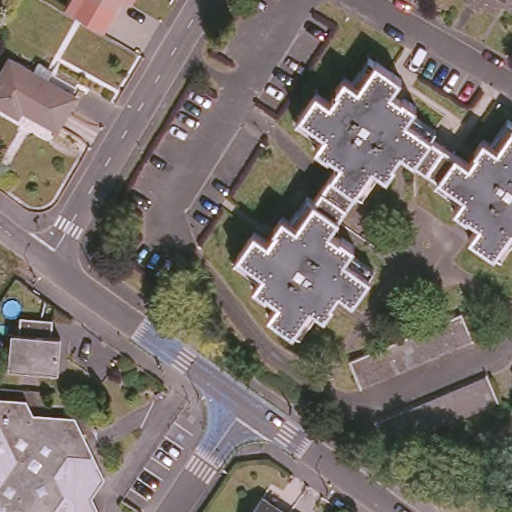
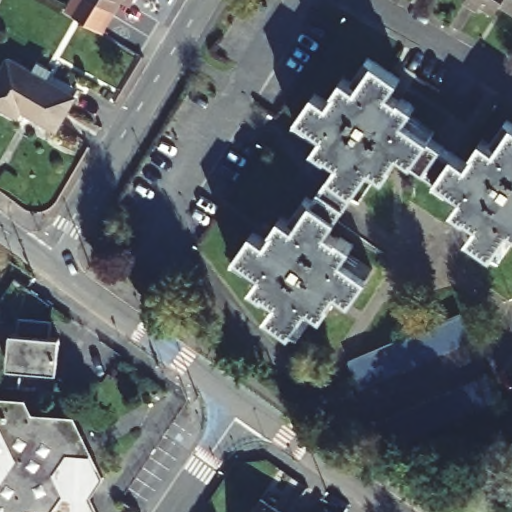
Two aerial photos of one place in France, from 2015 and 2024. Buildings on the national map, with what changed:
unchanged [(126,5),(121,4),(105,31),(66,10),(72,0),(129,0),(126,5)]
unchanged [(495,14),(482,5),(478,10),(465,1),(466,0),(512,0),(512,11),(501,4),(495,14)]
unchanged [(23,110),(20,116),(0,105),(0,74),(9,58),(76,95),(58,130),(23,110)]
unchanged [(339,162),(330,156),(328,158),(315,149),(324,135),(299,117),(316,92),(330,102),(337,91),(335,90),(344,77),(358,87),(375,61),(401,79),(392,93),(402,100),(403,99),(415,107),(407,120),(444,146),(426,171),(401,154),(394,164),(396,165),(387,178),(372,169),(346,205),(322,188),(339,162)]
unchanged [(476,154),(474,152),(483,139),(497,149),(512,126),(512,232),(511,231),(494,255),(469,239),(478,225),(468,218),(467,220),(454,210),(463,197),(426,171),(444,146),(469,164),(476,154)]
unchanged [(329,230),(340,238),(341,236),(354,245),(345,259),(370,276),(353,301),(339,291),(331,302),(333,303),(325,316),(312,307),(294,332),(269,315),(278,302),(268,295),(267,296),(253,287),(263,273),(237,256),(254,231),(268,240),(275,230),(273,229),(283,216),(296,225),(322,188),(346,205),(329,230)]
unchanged [(472,340),(460,346),(447,351),(434,356),(422,361),(410,367),(396,372),(385,377),(372,383),(361,387),(350,360),(361,356),(373,351),(386,345),(398,340),(411,335),(423,330),(435,325),(449,319),(460,315),(472,340)]
unchanged [(55,340),(64,341),(61,375),(13,371),(16,337),(23,338),(24,322),(56,325),(55,340)]
unchanged [(488,377),(498,401),(485,406),(472,412),(460,417),(448,422),(435,428),(422,433),(410,439),(398,444),(387,449),(375,422),(386,417),(399,412),(411,407),(424,402),(436,396),(449,391),(461,386),(475,380),(487,375),(488,377)]
unchanged [(31,414),(72,417),(100,476),(88,495),(96,512),(0,512),(0,399),(24,400),(31,414)]
unchanged [(276,508),(273,512),(232,512),(248,488),(276,508)]
unchanged [(281,512),(273,512),(276,508),(281,512)]

